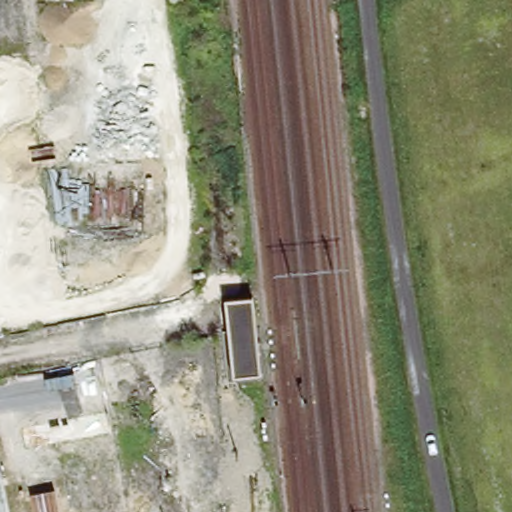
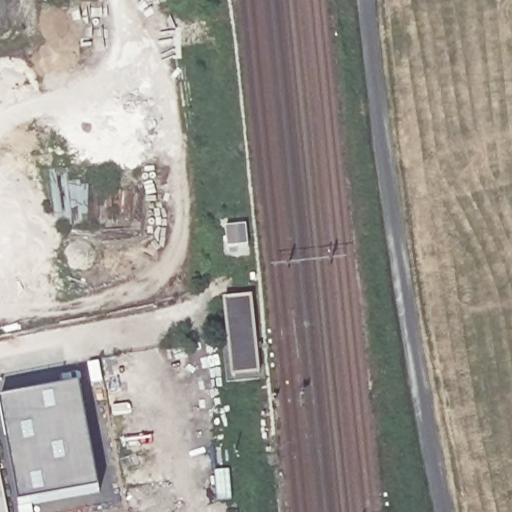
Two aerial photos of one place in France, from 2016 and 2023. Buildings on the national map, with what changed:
unchanged [(256,294),(261,372),(227,374),(222,297),(256,294)]
new [(20,506),(0,402),(81,387),(100,490),(20,506)]
unchanged [(0,512),(0,461),(10,512),(0,512)]

